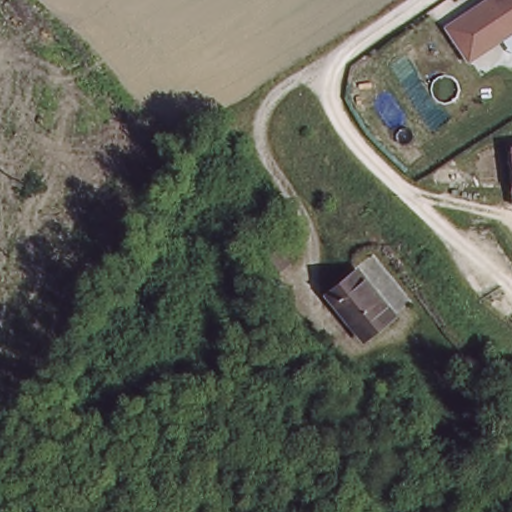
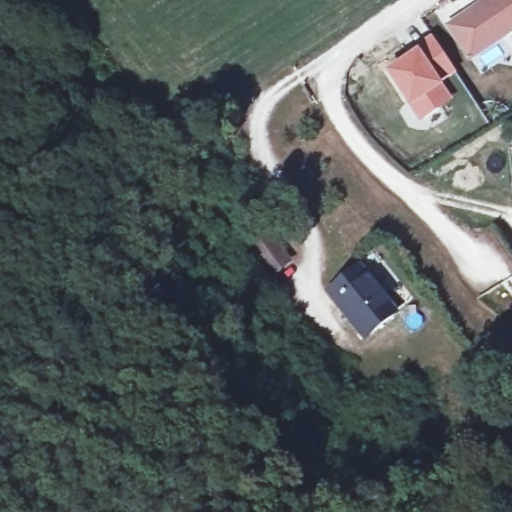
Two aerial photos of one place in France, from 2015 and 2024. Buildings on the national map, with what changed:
unchanged [(470,63),(444,25),(483,0),(512,0),(512,36),(470,63)]
new [(432,35),(456,72),(442,82),(452,98),(418,122),(384,71),(432,35)]
unchanged [(267,239),(292,270),(274,282),(250,254),(267,239)]
unchanged [(355,271),(392,317),(364,338),(328,292),(355,271)]

